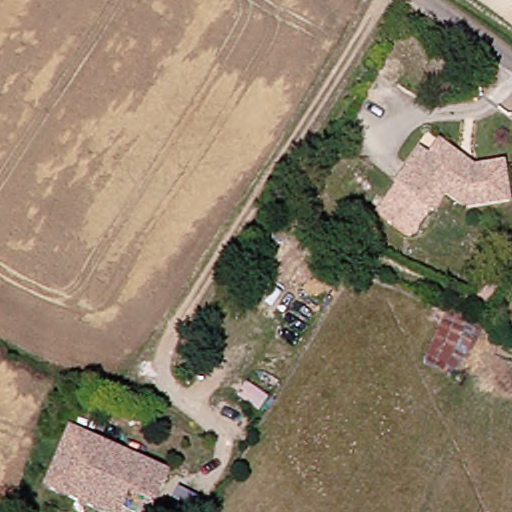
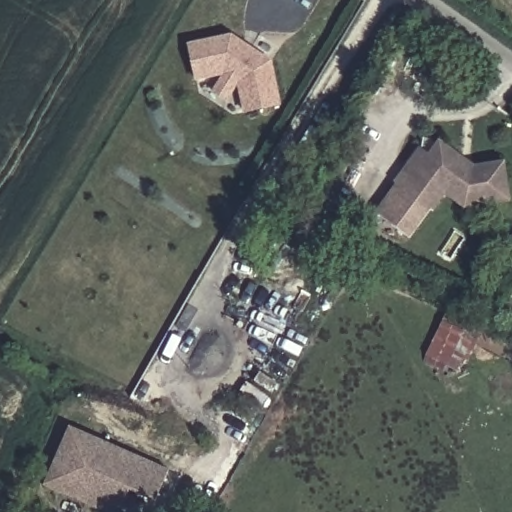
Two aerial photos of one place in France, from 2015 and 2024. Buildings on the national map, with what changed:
new [(231,33),(272,59),(281,103),(242,112),(237,88),(227,103),(210,93),(221,76),(195,81),(187,42),(231,33)]
unchanged [(410,167),(423,153),(435,165),(449,151),(467,167),(500,163),(507,208),(460,216),(444,201),(431,217),(425,211),(395,185),(395,184),(410,167)]
unchanged [(442,313),(479,329),(466,358),(463,356),(455,372),(421,358),(442,313)]
unchanged [(147,512),(144,512),(127,500),(120,512),(100,512),(89,504),(43,472),(79,419),(103,436),(149,469),(167,482),(147,512)]

